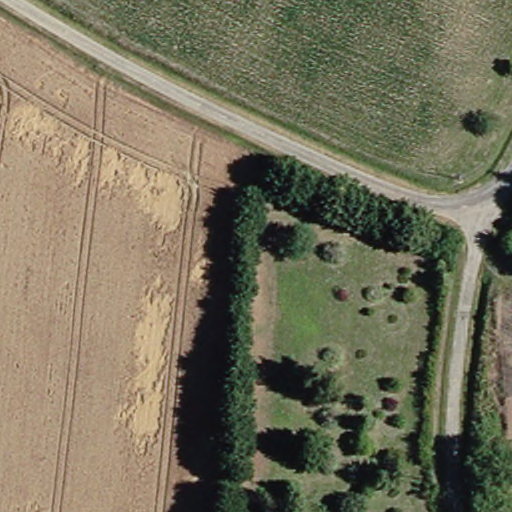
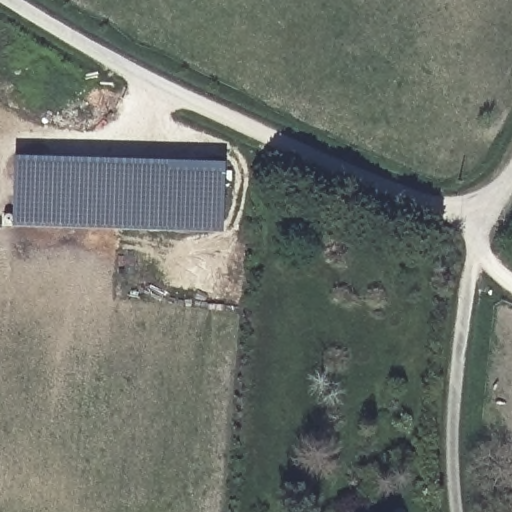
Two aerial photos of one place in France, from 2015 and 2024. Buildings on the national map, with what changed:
new [(18,157),(225,162),(222,232),(16,226),(18,157)]

